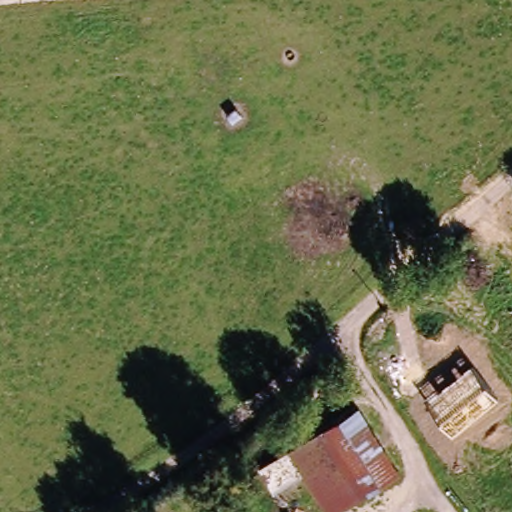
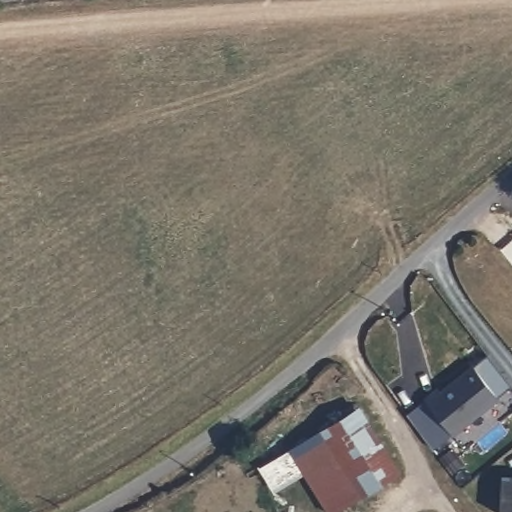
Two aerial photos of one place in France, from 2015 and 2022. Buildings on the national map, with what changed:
unchanged [(497,398),(454,434),(427,400),(470,365),(497,398)]
unchanged [(357,409),(398,471),(333,512),(330,512),(291,450),(357,409)]
new [(512,479),(512,512),(499,512),(501,478),(512,479)]

